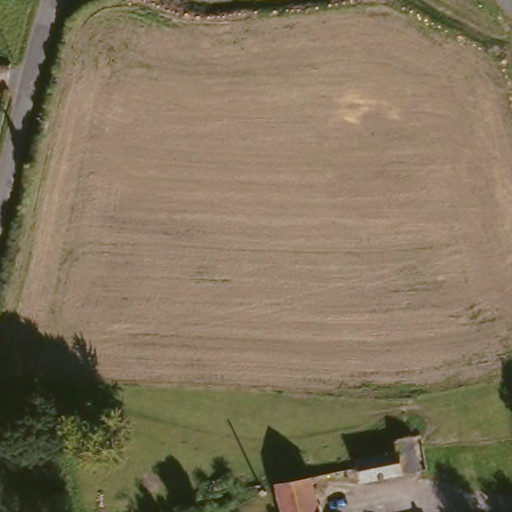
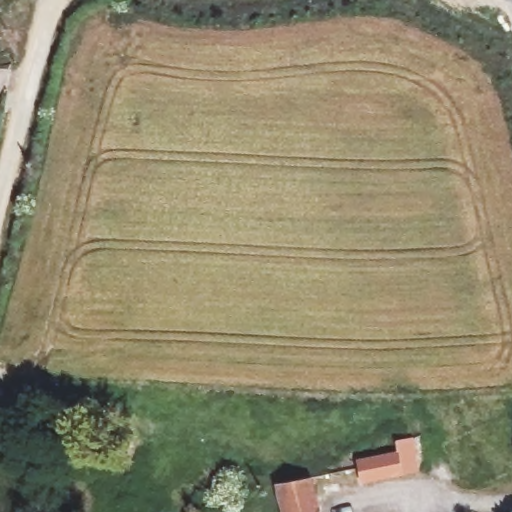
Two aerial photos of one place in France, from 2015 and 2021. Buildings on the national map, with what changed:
unchanged [(385,447),(381,435),(407,428),(413,446),(418,464),(359,480),(353,456),(385,447)]
unchanged [(347,490),(322,497),(318,498),(321,512),(286,512),(281,485),(317,477),(342,471),(347,490)]

